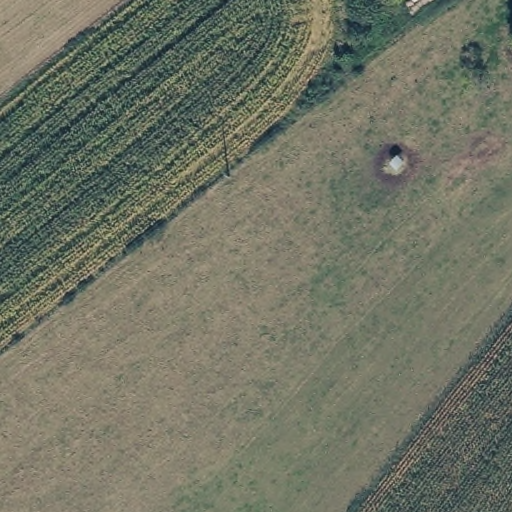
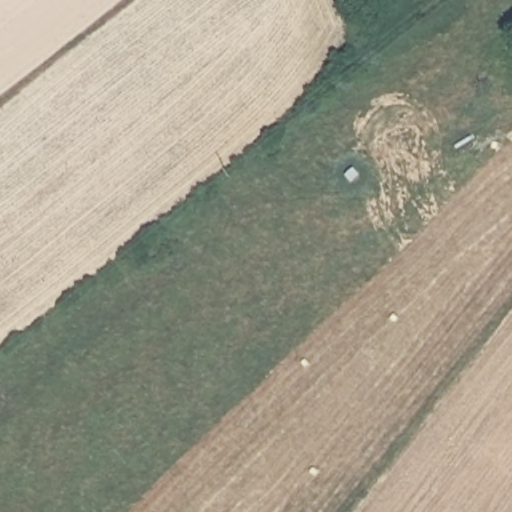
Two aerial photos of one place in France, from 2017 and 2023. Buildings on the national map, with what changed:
unchanged [(512,67),(502,55),(512,47),(512,67)]

